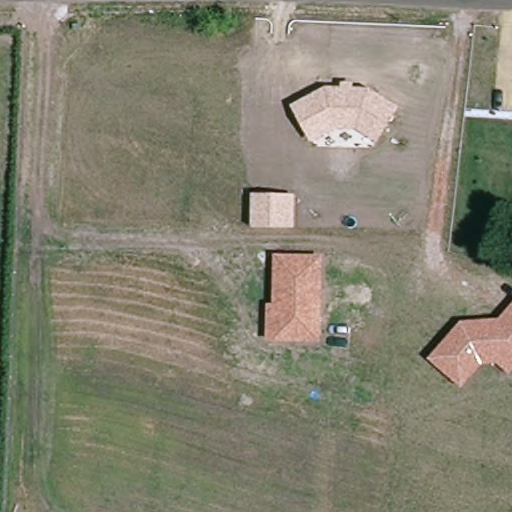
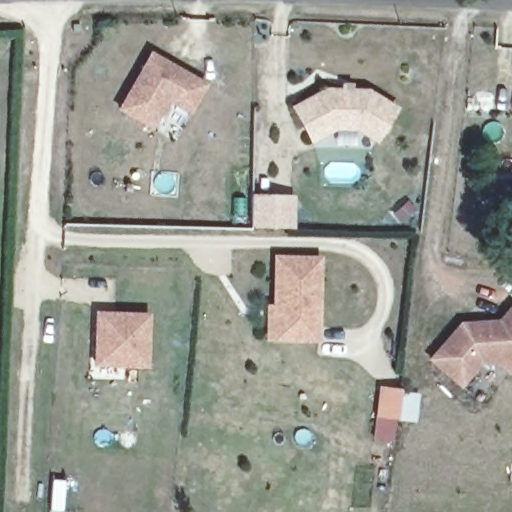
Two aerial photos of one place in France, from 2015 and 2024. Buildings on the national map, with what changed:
new [(150,50),(208,82),(191,114),(167,101),(152,128),(116,109),(150,50)]
unchanged [(358,131),(333,130),(311,143),(290,105),(325,87),(341,88),(341,82),(354,82),(354,87),(368,88),(402,109),(379,144),(358,131)]
unchanged [(251,192),(296,193),(295,229),(251,227),(251,192)]
unchanged [(266,342),(267,305),(274,305),(274,255),(323,255),(322,343),(266,342)]
unchanged [(462,321),(499,320),(512,304),(512,373),(510,375),(497,363),(482,365),(463,388),(429,359),(462,321)]
new [(93,366),(95,310),(152,312),(149,368),(93,366)]
new [(375,415),(379,385),(401,390),(419,393),(417,422),(396,420),(393,440),(374,438),(375,415)]

